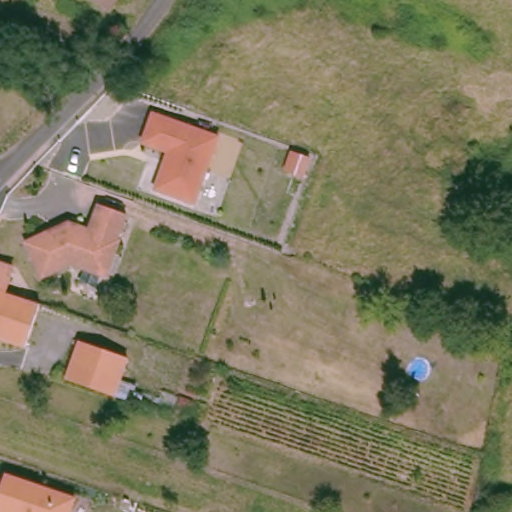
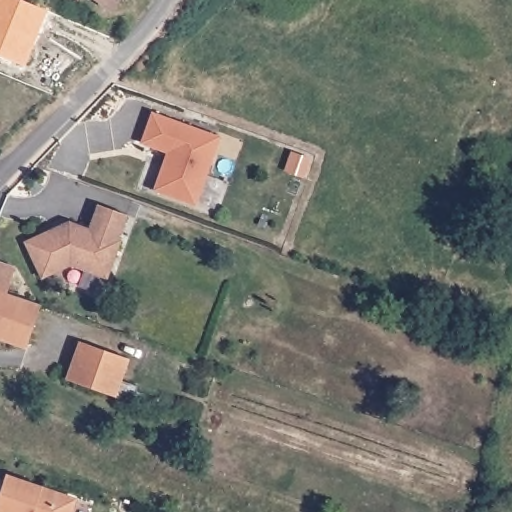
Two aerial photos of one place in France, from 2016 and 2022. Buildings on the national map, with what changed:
new [(0,55),(0,0),(23,0),(45,10),(22,65),(0,55)]
unchanged [(94,0),(107,0),(102,7),(94,0)]
unchanged [(213,157),(195,205),(155,190),(170,152),(143,142),(148,131),(155,113),(220,138),(213,157)]
unchanged [(118,238),(121,239),(107,276),(73,262),(44,275),(28,240),(71,220),(79,223),(90,229),(100,204),(127,214),(118,238)]
unchanged [(42,305),(31,335),(27,347),(0,337),(0,290),(18,296),(42,305)]
unchanged [(126,361),(122,372),(112,398),(112,399),(65,382),(75,354),(79,344),(126,361)]
unchanged [(0,497),(8,474),(77,498),(73,512),(1,512),(0,512),(0,497)]

